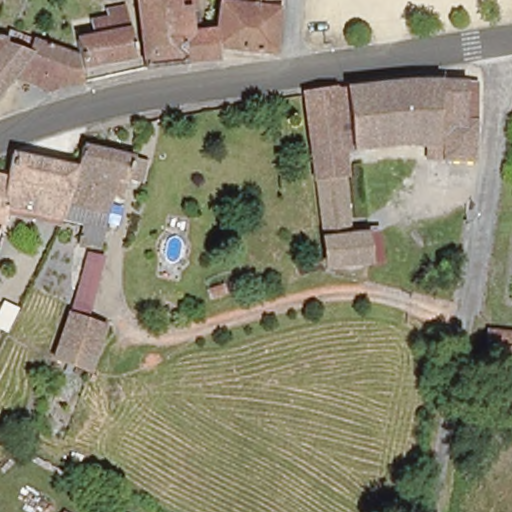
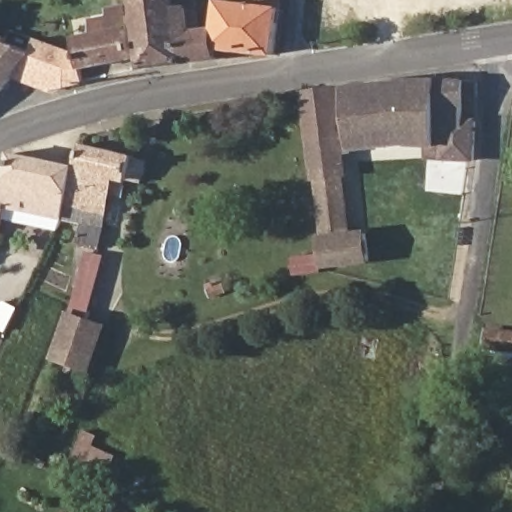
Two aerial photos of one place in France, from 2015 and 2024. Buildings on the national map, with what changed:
unchanged [(216,60),(143,69),(135,0),(193,0),(194,8),(186,9),(188,32),(205,31),(214,31),(215,52),(216,60)]
unchanged [(214,31),(217,1),(232,3),(233,0),(280,0),(279,8),(281,8),(275,55),(215,52),(214,31)]
unchanged [(76,39),(107,33),(106,20),(126,16),(135,62),(82,73),(80,65),(79,54),(76,39)]
unchanged [(62,87),(50,91),(12,76),(0,95),(0,38),(6,39),(6,43),(30,52),(35,39),(50,44),(79,54),(80,65),(82,73),(83,82),(63,86),(62,87)]
unchanged [(472,160),(442,160),(443,148),(408,144),(342,152),(344,174),(339,174),(347,237),(364,235),(367,261),(326,267),(314,179),(311,179),(310,174),(306,139),(305,136),(309,135),(303,95),(315,93),(347,87),(367,84),(408,80),(414,79),(462,80),(465,80),(477,80),(476,107),(474,160),(472,160)]
unchanged [(110,205),(104,238),(107,239),(100,262),(85,258),(75,256),(79,233),(60,230),(74,179),(80,157),(134,171),(123,208),(110,205)]
unchanged [(0,213),(7,187),(12,165),(74,179),(60,230),(0,220),(0,213)]
unchanged [(0,213),(0,185),(7,187),(0,213)]
unchanged [(17,265),(22,255),(31,258),(25,268),(17,265)]
unchanged [(105,328),(89,371),(52,359),(67,320),(76,287),(80,273),(99,277),(95,292),(88,322),(105,328)]
unchanged [(479,361),(478,332),(512,331),(512,364),(479,361)]

